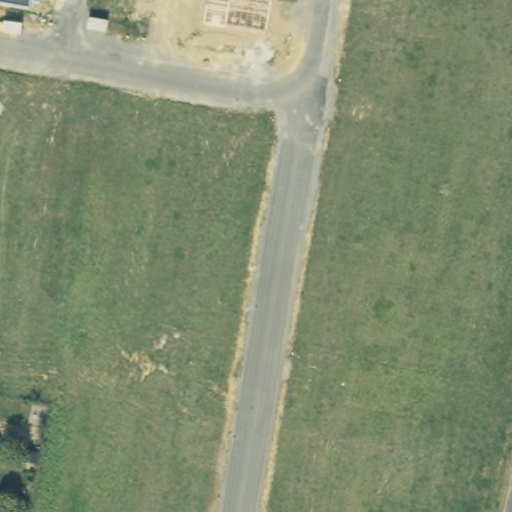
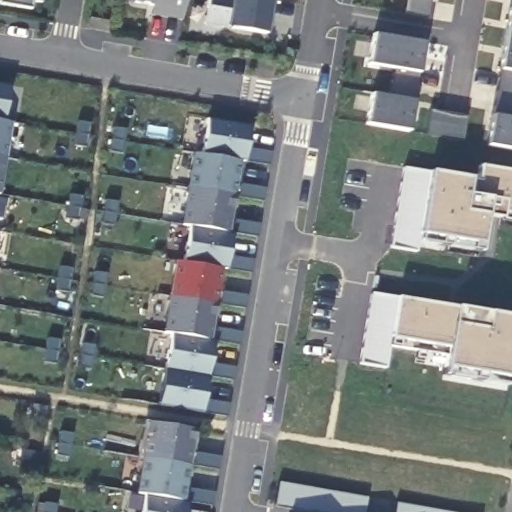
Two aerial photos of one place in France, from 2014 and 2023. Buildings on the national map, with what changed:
unchanged [(41,2),(32,0),(31,9),(0,4),(0,2),(0,0),(42,0),(41,2)]
unchanged [(182,20),(151,15),(153,6),(134,4),(135,0),(185,0),(182,20)]
new [(265,34),(227,28),(204,25),(208,0),(271,0),(265,34)]
new [(427,18),(403,14),(408,0),(431,0),(427,18)]
new [(512,0),(512,149),(488,145),(512,0)]
new [(409,131),(365,125),(371,92),(391,96),(396,70),(368,65),(372,35),(424,42),(409,131)]
new [(246,162),(241,162),(230,234),(234,235),(227,270),(222,270),(210,341),(217,340),(204,415),(159,407),(169,333),(162,332),(175,261),(184,263),(190,227),(181,225),(193,153),(201,154),(207,118),(250,125),(246,162)]
new [(508,218),(485,214),(480,244),(420,235),(418,251),(391,247),(404,167),(429,174),(469,180),(477,181),(479,166),(512,171),(512,215),(509,214),(508,218)]
new [(443,367),(447,346),(393,338),(388,368),(360,364),(371,293),(398,297),(455,306),(512,316),(512,357),(508,378),(443,367)]
new [(136,494),(147,422),(195,430),(191,451),(196,452),(189,502),(187,512),(140,512),(143,495),(136,494)]
new [(308,512),(275,506),(279,483),(368,498),(366,512),(308,512)]
new [(446,512),(396,512),(397,504),(446,512)]

